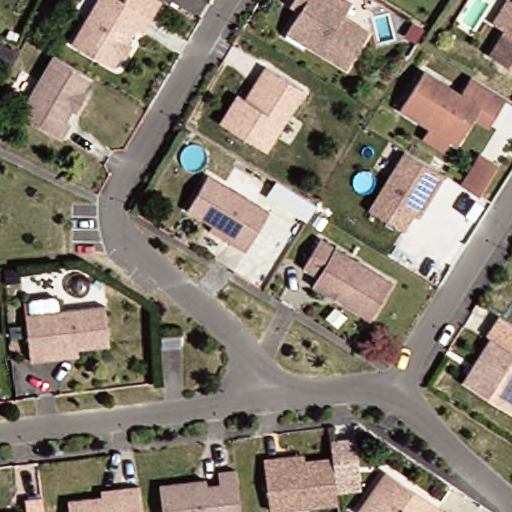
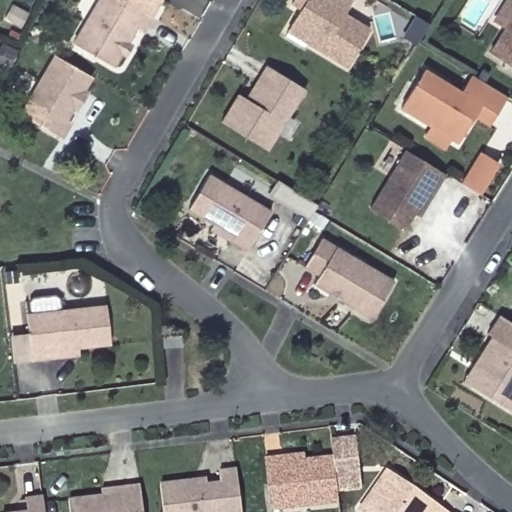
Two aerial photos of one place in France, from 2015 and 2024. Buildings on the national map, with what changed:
unchanged [(155,12),(154,12),(145,27),(135,45),(130,42),(119,60),(107,80),(67,57),(79,37),(101,0),(134,0),(155,12)]
unchanged [(345,71),(304,47),(307,42),(288,31),(306,1),(304,0),(338,0),(348,6),(340,19),(366,34),(345,71)]
unchanged [(512,6),(512,24),(504,19),(512,6)]
unchanged [(512,30),(512,63),(497,54),(512,30)]
unchanged [(71,122),(62,138),(21,114),(55,55),(92,76),(67,119),(71,122)]
unchanged [(271,151),(225,123),(242,95),(255,103),(267,84),(262,81),(270,67),(309,90),(271,151)]
unchanged [(475,76),(508,97),(497,115),(482,106),(459,143),(403,109),(426,71),(463,93),(473,76),(475,76)]
unchanged [(417,215),(408,231),(373,210),(408,151),(448,175),(440,190),(422,218),(417,215)]
unchanged [(483,154),(500,165),(481,196),(480,194),(464,185),(483,154)]
unchanged [(191,201),(207,175),(272,212),(254,246),(234,235),(209,220),(212,214),(191,201)]
unchanged [(321,279),(323,276),(309,268),(326,239),(396,282),(374,319),(344,300),(318,285),(321,279)]
unchanged [(113,301),(118,341),(85,345),(78,346),(66,355),(35,359),(29,312),(113,301)]
unchanged [(495,337),(491,334),(503,316),(512,322),(512,411),(476,389),(466,383),(478,366),(495,337)]
unchanged [(360,437),(366,488),(341,491),(337,459),(335,440),(360,437)]
unchanged [(342,500),(342,504),(275,512),(270,461),(285,459),(307,457),(307,463),(337,459),(341,491),(342,500)]
unchanged [(240,469),(245,512),(167,512),(164,484),(197,480),(210,479),(210,484),(224,483),(223,471),(240,469)]
unchanged [(415,489),(425,496),(449,512),(363,512),(390,472),(415,489)]
unchanged [(106,496),(105,490),(128,487),(144,485),(147,512),(73,512),(72,500),(106,496)]
unchanged [(48,512),(25,512),(24,504),(47,501),(48,512)]

